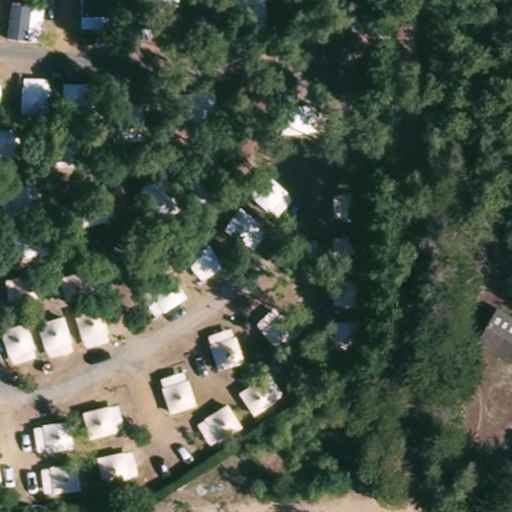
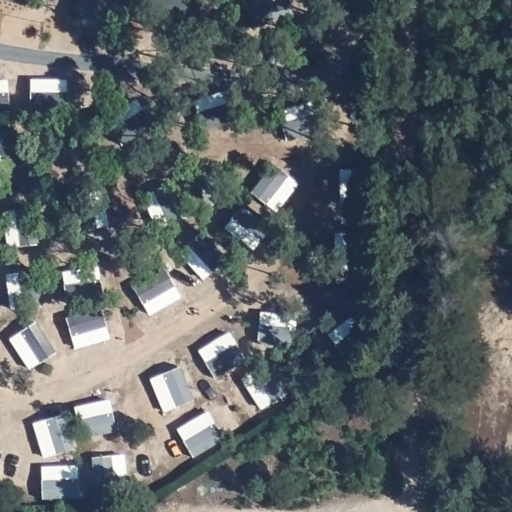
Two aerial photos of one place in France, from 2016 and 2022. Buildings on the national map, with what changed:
unchanged [(512,315),(512,367),(456,335),(480,297),(512,315)]

